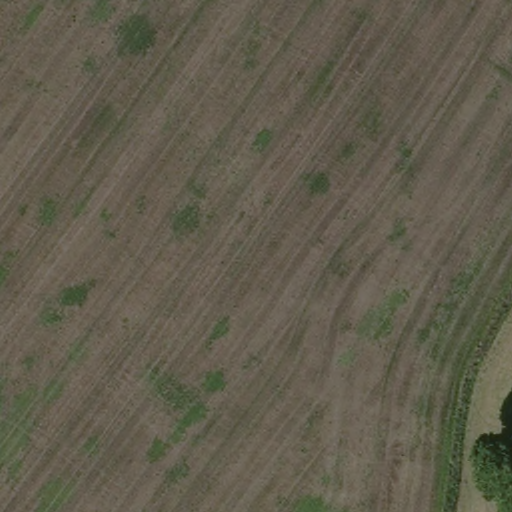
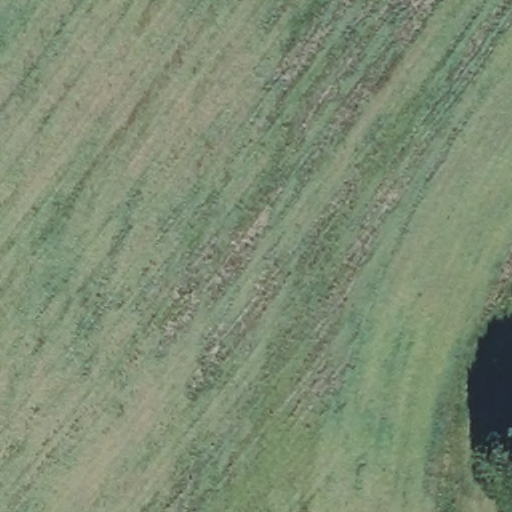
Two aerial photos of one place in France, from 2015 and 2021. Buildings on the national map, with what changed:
unchanged [(512,439),(512,455),(504,447),(512,439)]

